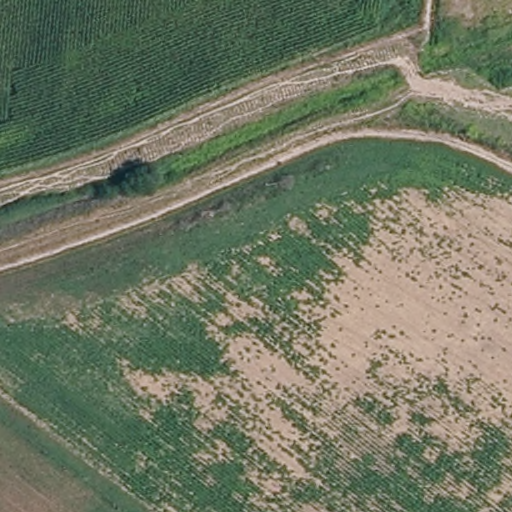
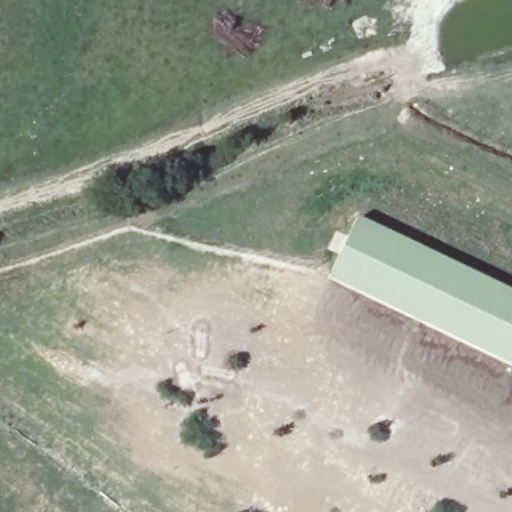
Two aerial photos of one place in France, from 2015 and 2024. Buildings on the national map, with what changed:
new [(512,289),(512,363),(332,278),(361,217),(512,289)]

